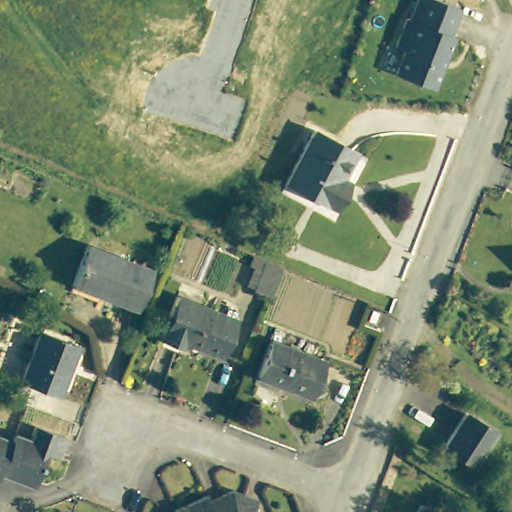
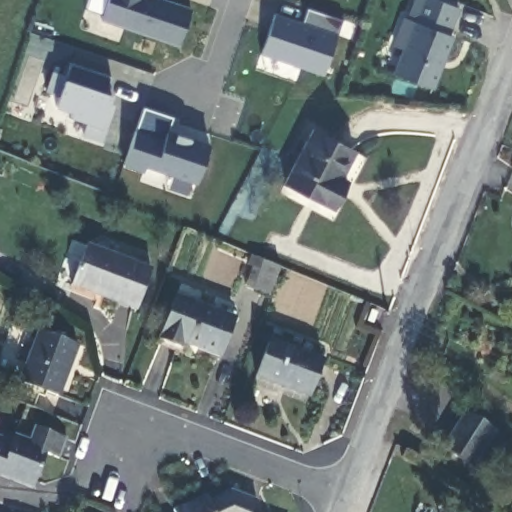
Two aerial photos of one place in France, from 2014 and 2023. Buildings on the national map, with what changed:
new [(193,8),(179,47),(101,18),(107,0),(170,0),(193,8)]
unchanged [(396,72),(405,48),(396,44),(407,16),(410,17),(416,0),(444,0),(460,6),(450,33),(454,34),(434,87),(396,72)]
new [(323,76),(261,54),(276,12),(301,22),(307,6),(344,20),(323,76)]
new [(104,92),(115,96),(104,127),(100,142),(81,135),(84,121),(70,116),(71,112),(55,107),(59,95),(45,91),(52,69),(68,74),(71,62),(113,76),(104,92)]
new [(198,184),(147,166),(145,172),(121,164),(135,127),(143,106),(174,116),(168,128),(211,143),(198,184)]
unchanged [(358,149),(346,175),(353,180),(337,208),(287,181),(316,127),(358,149)]
unchanged [(151,266),(136,308),(73,283),(88,242),(151,266)]
unchanged [(268,258),(284,265),(271,297),(256,291),(246,288),(253,266),(264,270),(268,258)]
unchanged [(238,315),(225,354),(188,341),(186,346),(164,339),(179,295),(238,315)]
unchanged [(79,343),(68,395),(29,387),(40,335),(79,343)]
unchanged [(328,359),(315,397),(262,379),(275,341),(328,359)]
unchanged [(495,432),(473,466),(443,446),(464,412),(495,432)]
unchanged [(15,431),(31,435),(35,423),(68,434),(61,454),(49,450),(39,479),(36,485),(36,486),(5,475),(1,473),(0,477),(0,432),(13,437),(15,431)]
unchanged [(208,487),(211,493),(233,481),(256,490),(251,505),(269,512),(181,512),(176,502),(208,487)]

